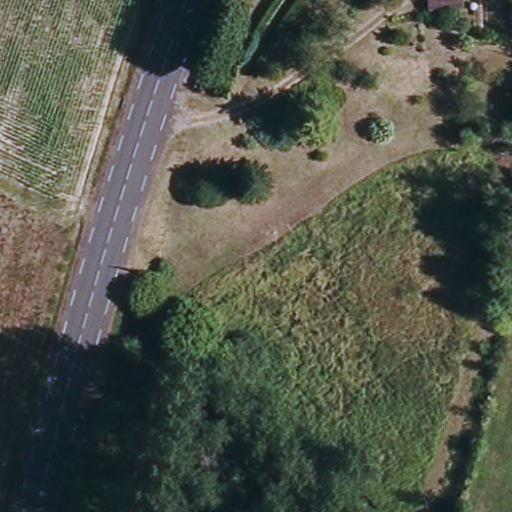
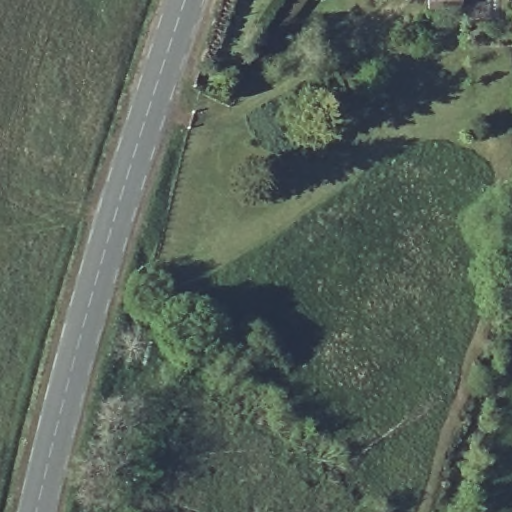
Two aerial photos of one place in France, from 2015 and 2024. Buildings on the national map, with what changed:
unchanged [(423,5),(422,0),(453,0),(453,4),(423,5)]

